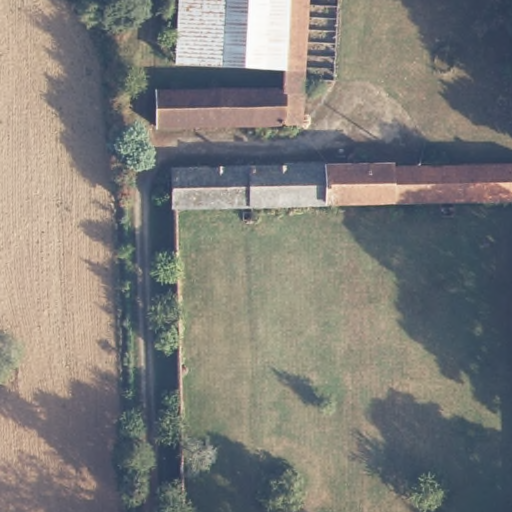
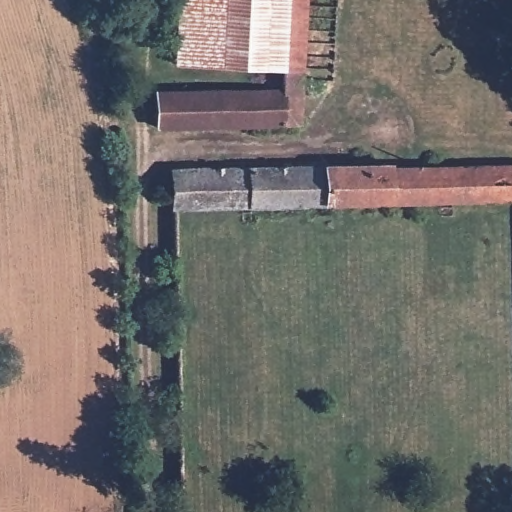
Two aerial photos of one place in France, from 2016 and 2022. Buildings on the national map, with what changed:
unchanged [(285,65),(177,61),(178,0),(287,0),(285,65)]
unchanged [(285,88),(285,65),(287,0),(309,0),(307,127),(283,126),(285,88)]
unchanged [(157,126),(156,84),(226,86),(226,126),(157,126)]
unchanged [(226,126),(226,86),(285,88),(283,126),(226,126)]
unchanged [(172,163),(512,163),(512,205),(173,209),(172,163)]

